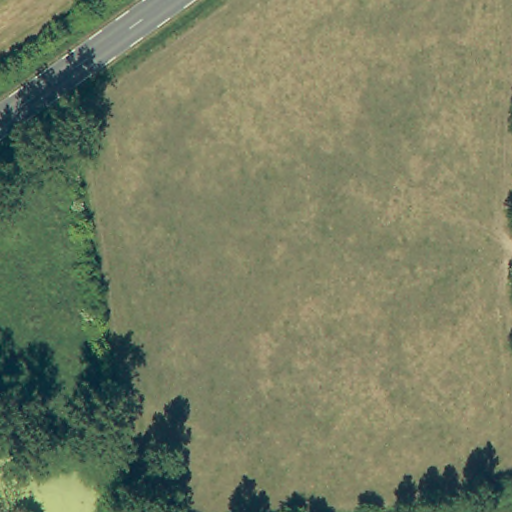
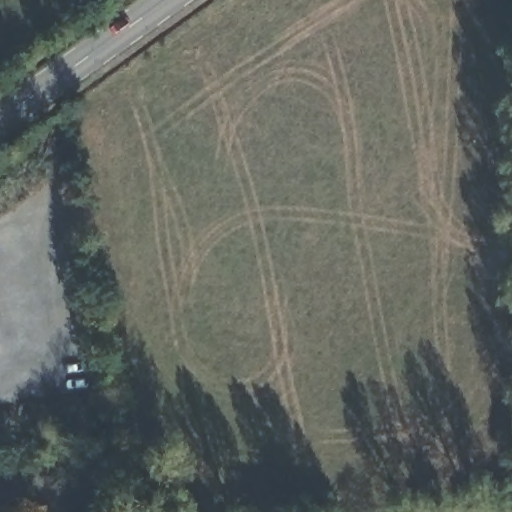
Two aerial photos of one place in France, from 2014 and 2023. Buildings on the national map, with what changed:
[]

